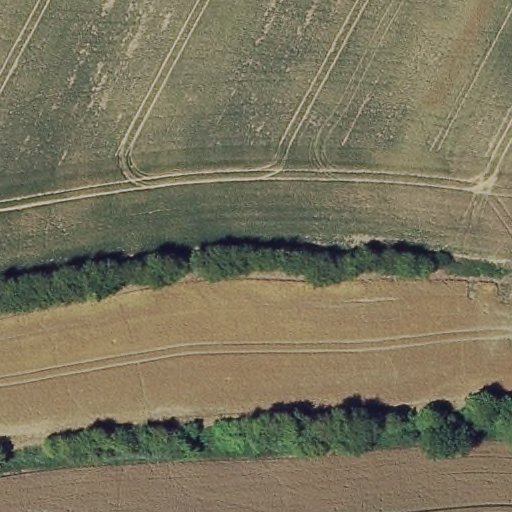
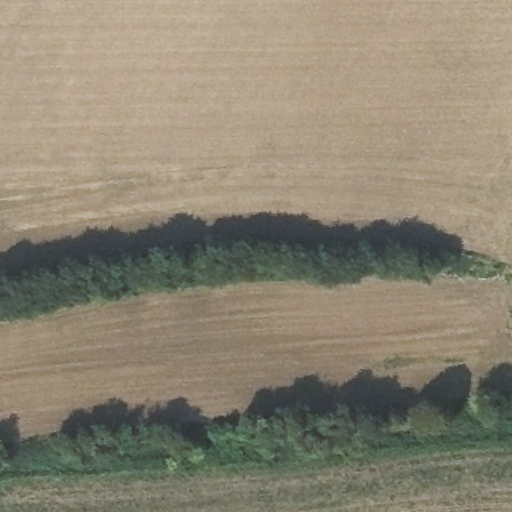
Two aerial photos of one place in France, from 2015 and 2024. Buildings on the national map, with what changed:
[]

